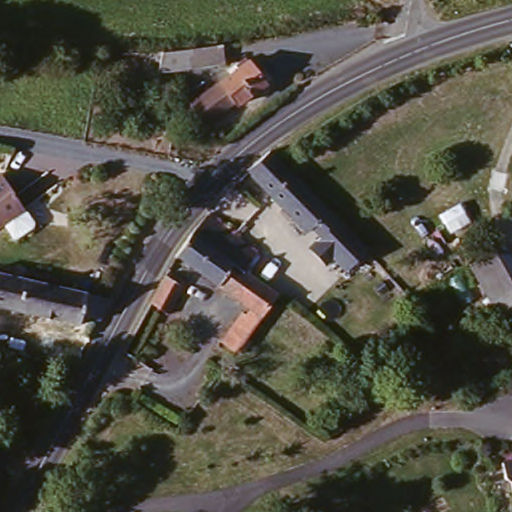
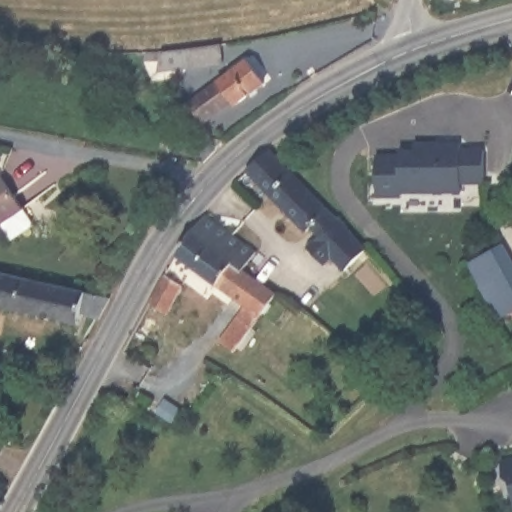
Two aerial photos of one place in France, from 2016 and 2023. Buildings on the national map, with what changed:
unchanged [(221,44),(222,67),(147,76),(145,55),(221,44)]
unchanged [(263,89),(227,108),(225,104),(213,111),(204,91),(217,86),(215,78),(252,61),(263,89)]
unchanged [(323,240),(314,233),(310,237),(241,174),(267,149),(335,213),(343,221),(365,240),(347,260),(323,240)]
new [(395,165),(395,161),(408,161),(408,157),(431,156),(431,152),(454,152),(455,156),(477,156),(479,187),(455,189),(455,195),(395,197),(396,194),(371,194),(371,166),(395,165)]
unchanged [(20,207),(31,223),(10,238),(0,224),(0,179),(20,207)]
unchanged [(215,342),(243,307),(177,258),(209,219),(255,253),(245,270),(278,295),(233,356),(215,342)]
unchanged [(491,245),(512,286),(512,310),(498,318),(466,262),(491,245)]
unchanged [(167,273),(184,284),(169,313),(152,302),(167,273)]
unchanged [(11,315),(0,313),(0,274),(111,300),(98,325),(90,324),(84,332),(11,315)]
unchanged [(502,461),(512,459),(512,485),(507,481),(502,461)]

